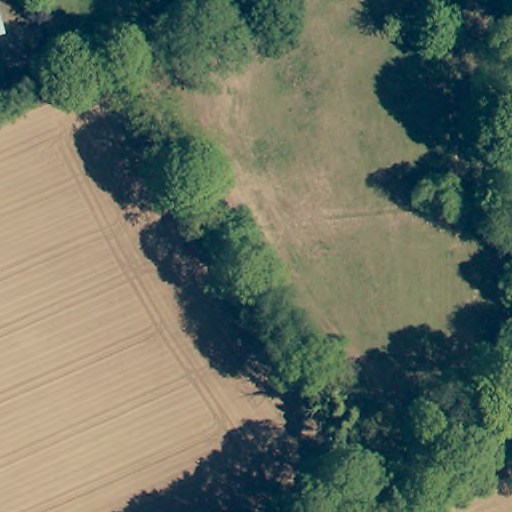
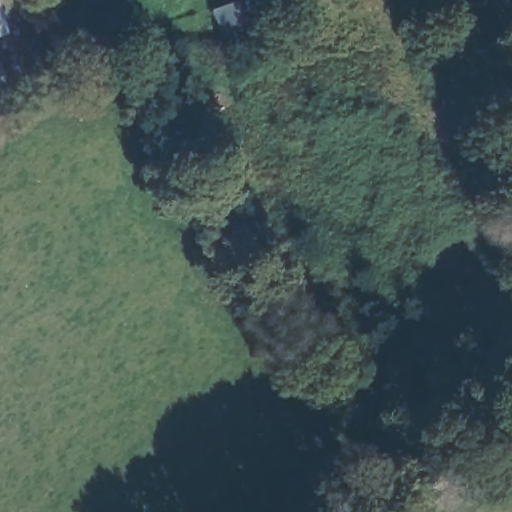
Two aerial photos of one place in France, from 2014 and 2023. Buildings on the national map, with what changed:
unchanged [(0,39),(0,1),(9,36),(0,39)]

